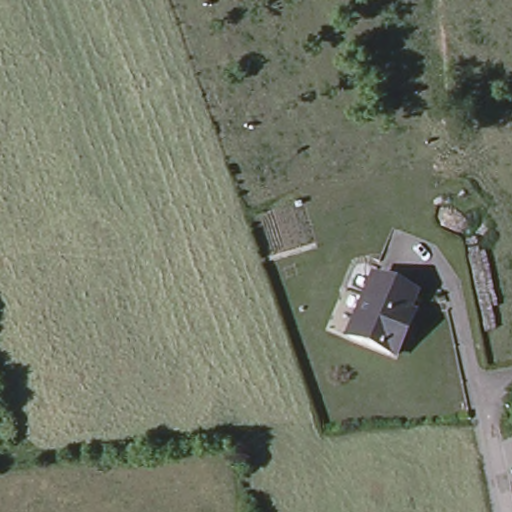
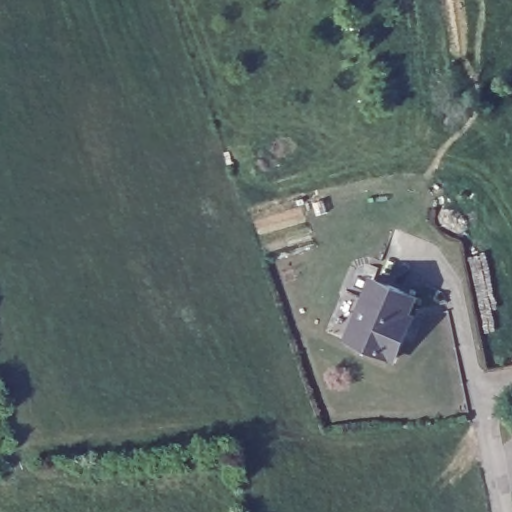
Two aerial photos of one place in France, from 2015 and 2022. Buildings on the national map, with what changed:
unchanged [(407,333),(397,356),(349,337),(374,277),(417,294),(410,311),(415,313),(407,333)]

